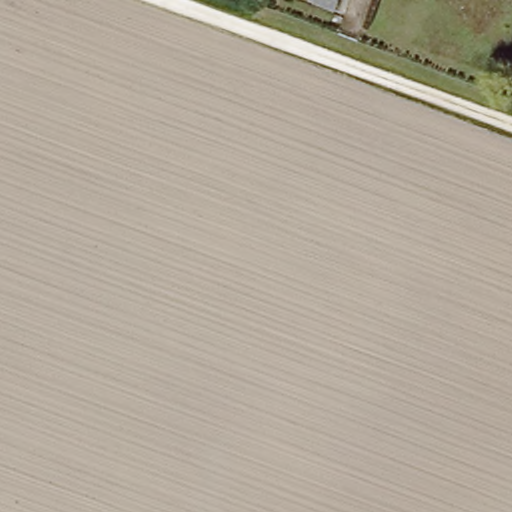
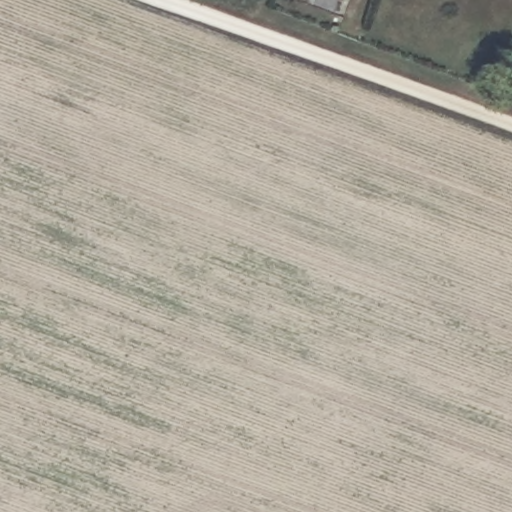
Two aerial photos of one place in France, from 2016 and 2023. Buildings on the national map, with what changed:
unchanged [(335,7),(319,0),(337,0),(335,7)]

